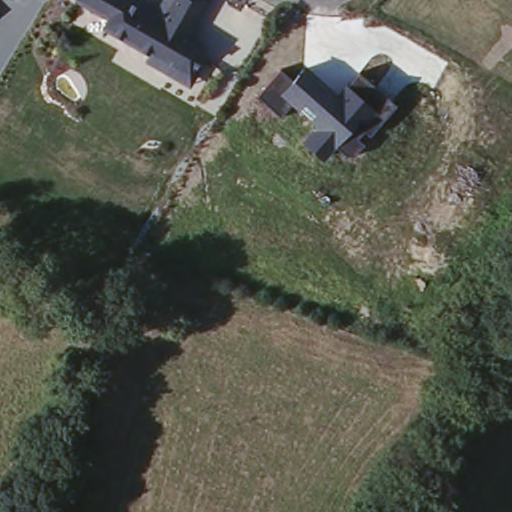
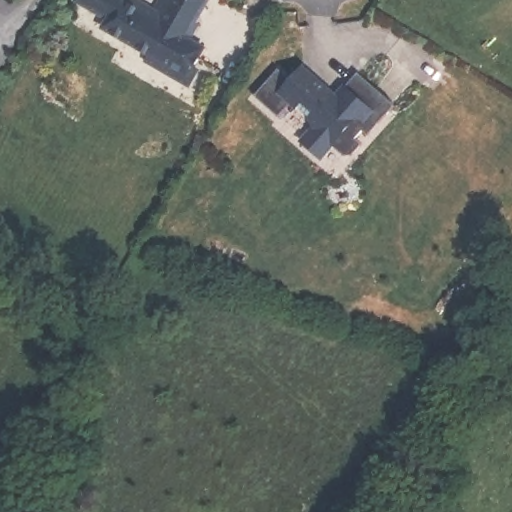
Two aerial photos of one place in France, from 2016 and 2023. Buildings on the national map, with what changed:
unchanged [(208,52),(188,86),(144,61),(148,54),(101,28),(107,18),(75,0),(130,0),(150,11),(158,0),(210,0),(189,39),(208,52)]
unchanged [(367,136),(362,131),(357,138),(363,143),(350,157),(335,147),(321,160),(302,142),(315,128),(289,104),(280,116),(257,95),(280,68),(292,78),(304,66),(336,92),(344,83),(351,88),(361,77),(395,103),(367,136)]

